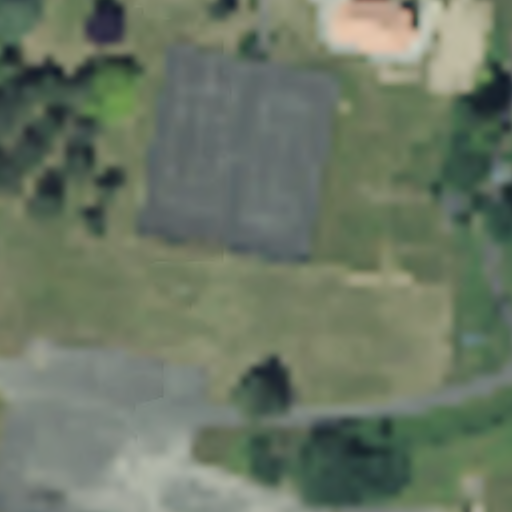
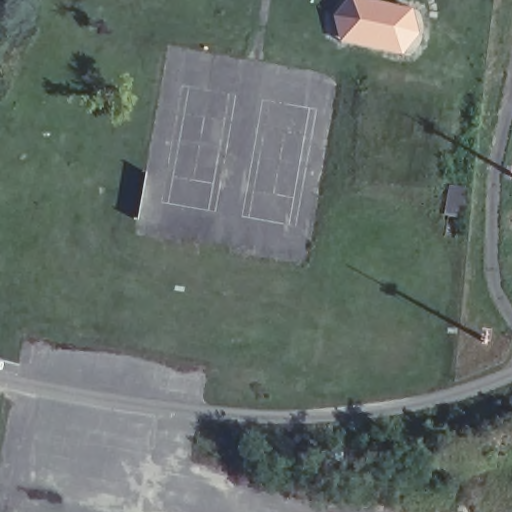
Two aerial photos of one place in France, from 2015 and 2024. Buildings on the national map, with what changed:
new [(339,44),(339,0),(414,0),(414,49),(339,44)]

